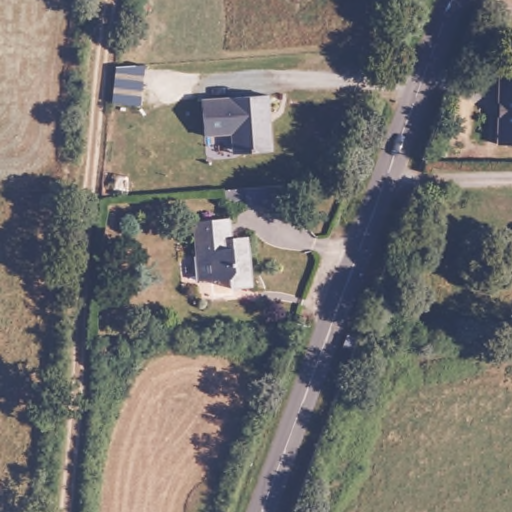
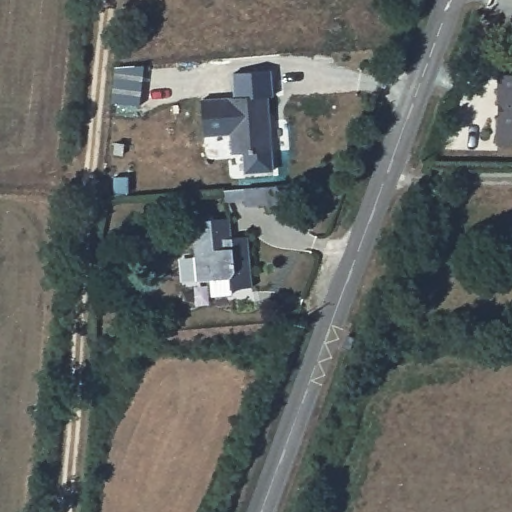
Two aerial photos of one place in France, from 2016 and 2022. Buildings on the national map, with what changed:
unchanged [(140,3),(139,10),(130,9),(131,4),(132,0),(141,0),(140,3)]
unchanged [(137,48),(124,47),(126,29),(139,31),(137,48)]
unchanged [(145,64),(141,105),(113,102),(117,66),(145,64)]
unchanged [(496,136),(499,65),(512,66),(512,137),(496,136)]
unchanged [(236,122),(209,123),(207,87),(273,84),(275,140),(249,141),(237,142),(236,122)]
unchanged [(306,213),(277,214),(277,208),(252,209),(252,205),(237,206),(237,193),(305,191),(306,213)]
unchanged [(236,243),(256,244),(256,296),(232,295),(232,303),(214,303),(214,286),(196,286),(197,225),(236,225),(236,243)]

